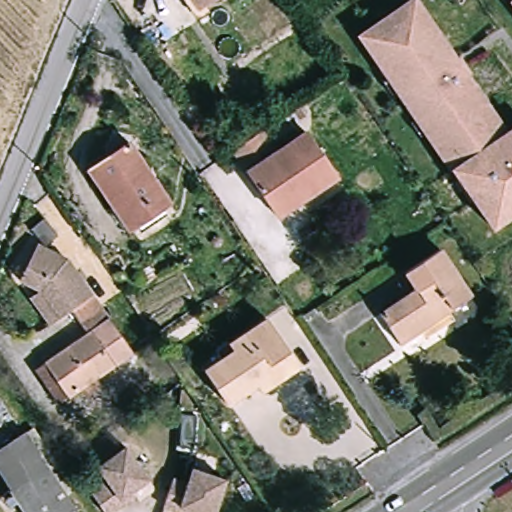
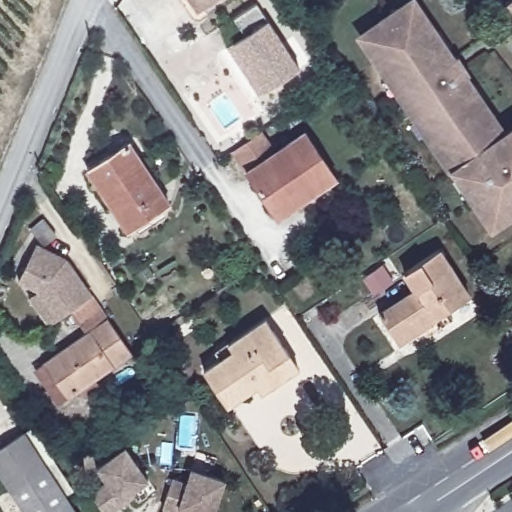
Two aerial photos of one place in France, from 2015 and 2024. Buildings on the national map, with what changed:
unchanged [(187,0),(210,0),(194,10),(187,0)]
new [(265,91),(233,43),(245,34),(233,19),(257,1),(269,18),(300,67),(265,91)]
unchanged [(473,204),(475,203),(437,148),(434,149),(426,138),(428,126),(423,119),(416,124),(398,96),(405,92),(403,89),(400,84),(388,82),(380,70),(384,68),(366,42),(383,30),(380,26),(400,14),(403,18),(418,7),(439,38),(433,41),(435,44),(444,58),(450,54),(456,63),(459,61),(473,80),(470,83),(476,93),(470,96),(481,112),(487,109),(508,139),(512,136),(512,219),(492,233),(473,204)]
unchanged [(325,51),(317,57),(309,45),(318,40),(325,51)]
new [(264,90),(258,95),(226,46),(232,43),(264,90)]
unchanged [(268,210),(229,151),(260,130),(274,153),(307,132),(337,179),(314,194),(275,220),(268,210)]
unchanged [(162,205),(129,228),(87,167),(120,144),(162,205)]
unchanged [(59,214),(69,229),(58,237),(48,223),(59,214)]
unchanged [(31,370),(44,362),(85,337),(66,307),(62,309),(52,316),(34,288),(41,284),(20,273),(38,237),(65,252),(131,356),(66,398),(54,406),(31,370)]
unchanged [(379,312),(413,289),(403,273),(437,250),(469,298),(400,344),(379,312)]
unchanged [(259,391),(254,384),(226,403),(200,366),(220,352),(216,346),(263,314),(286,348),(298,364),(259,391)]
unchanged [(13,490),(0,471),(0,444),(18,432),(44,469),(13,490)]
unchanged [(121,504),(109,512),(101,512),(89,493),(106,482),(96,467),(125,448),(147,481),(130,493),(133,497),(121,504)]
unchanged [(73,512),(27,512),(13,490),(44,469),(73,512)]
unchanged [(162,509),(172,481),(186,486),(191,472),(224,484),(214,512),(170,512),(162,509)]

